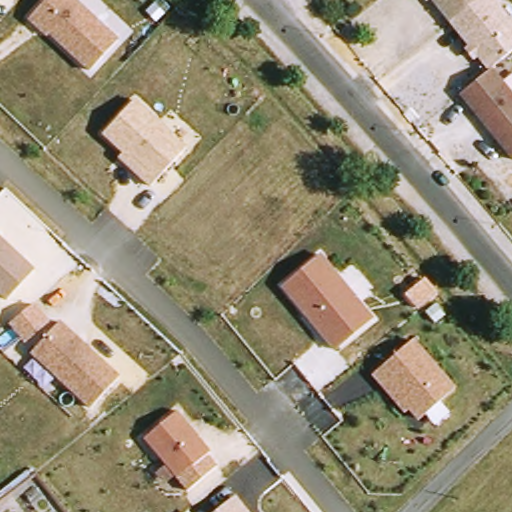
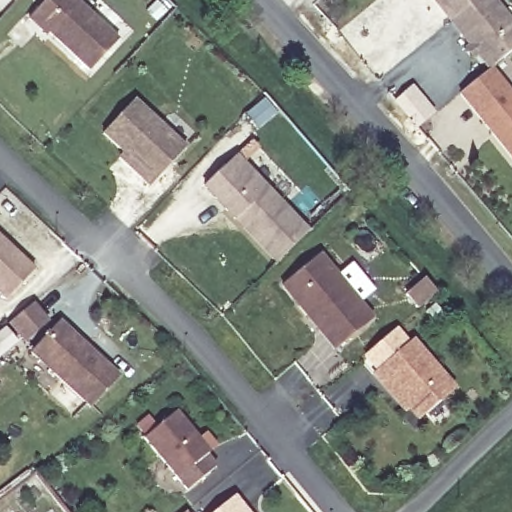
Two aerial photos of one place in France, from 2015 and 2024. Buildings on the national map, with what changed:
unchanged [(45,33),(25,17),(41,0),(80,0),(118,35),(89,67),(50,30),(45,33)]
unchanged [(489,0),(458,23),(439,0),(489,0)]
unchanged [(489,0),(497,0),(512,19),(512,58),(497,70),(458,23),(489,0)]
unchanged [(512,89),(512,154),(465,95),(497,70),(512,89)]
unchanged [(119,157),(124,151),(103,133),(135,96),(189,143),(152,185),(119,157)]
new [(311,232),(275,265),(202,189),(238,156),(311,232)]
unchanged [(0,232),(37,265),(8,296),(0,289),(0,232)]
unchanged [(281,283),(321,249),(374,316),(335,348),(281,283)]
new [(33,306),(46,321),(23,340),(10,325),(33,306)]
unchanged [(30,351),(60,317),(120,371),(91,406),(30,351)]
unchanged [(411,407),(403,410),(372,374),(413,337),(457,384),(419,417),(411,407)]
unchanged [(142,436),(178,407),(213,450),(208,455),(216,465),(186,489),(176,477),(142,436)]
unchanged [(236,492),(251,512),(211,512),(236,492)]

